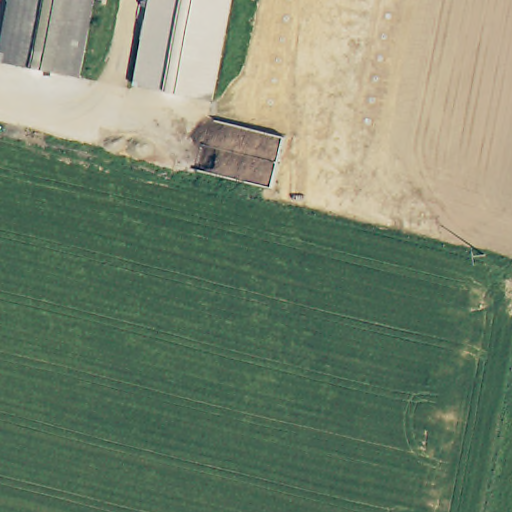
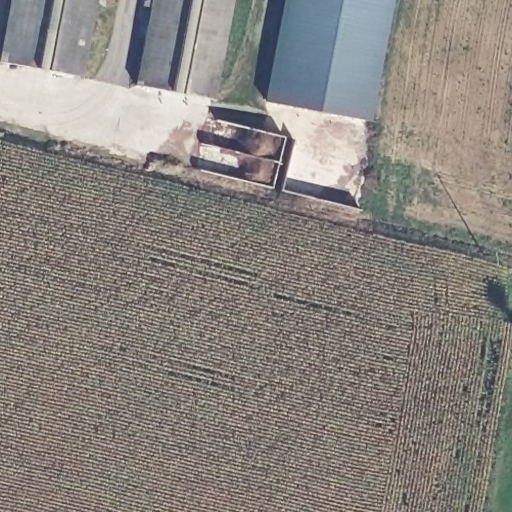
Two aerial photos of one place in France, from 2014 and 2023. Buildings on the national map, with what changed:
unchanged [(80,79),(26,70),(0,65),(0,53),(10,0),(94,0),(81,73),(80,79)]
unchanged [(154,89),(139,86),(140,79),(154,0),(236,0),(218,100),(154,89)]
new [(284,0),(393,0),(372,121),(266,101),(284,0)]

